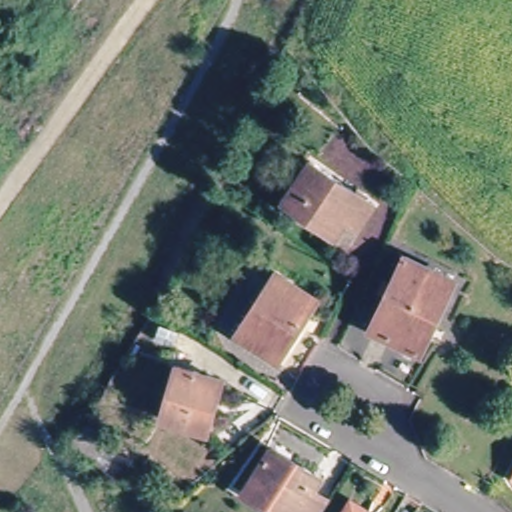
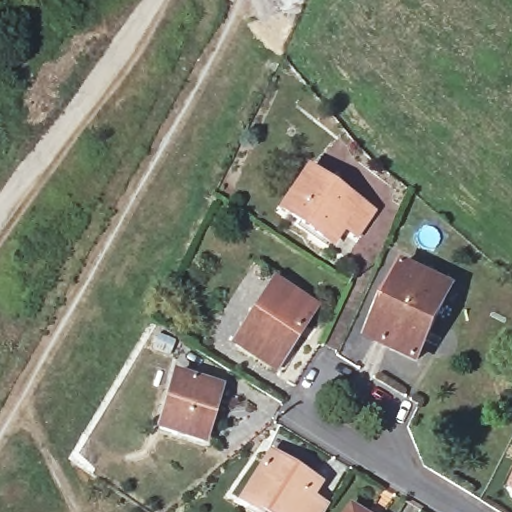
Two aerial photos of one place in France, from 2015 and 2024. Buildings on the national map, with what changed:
unchanged [(318,237),(278,205),(307,168),(367,213),(349,237),(337,227),(325,242),(318,237)]
unchanged [(407,263),(452,286),(445,305),(417,358),(371,334),(388,301),(407,263)]
unchanged [(262,357),(239,343),(249,325),(272,280),(313,303),(284,357),(279,366),(262,357)]
unchanged [(203,434),(164,426),(176,375),(216,382),(215,385),(203,434)]
unchanged [(270,454),(311,479),(318,483),(310,497),(326,507),(322,512),(264,512),(240,497),(270,454)]
unchanged [(355,507),(364,512),(351,512),(355,507)]

